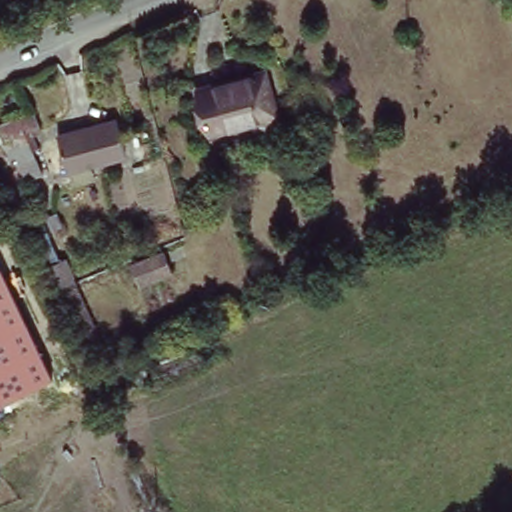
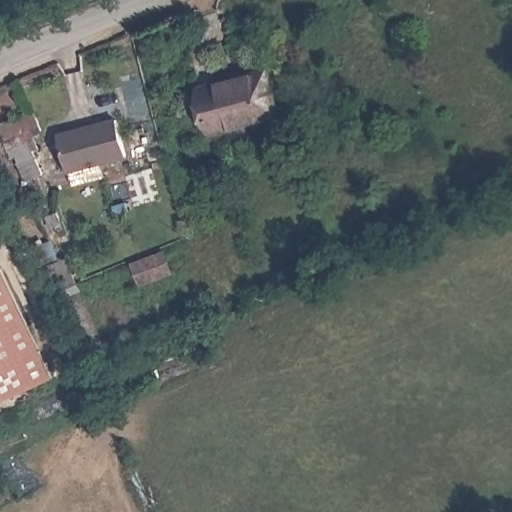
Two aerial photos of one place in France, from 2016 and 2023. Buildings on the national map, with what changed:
unchanged [(265,66),(280,115),(211,138),(196,84),(265,66)]
unchanged [(115,114),(125,153),(69,169),(57,131),(115,114)]
unchanged [(1,267),(55,381),(0,404),(0,267),(1,267)]

